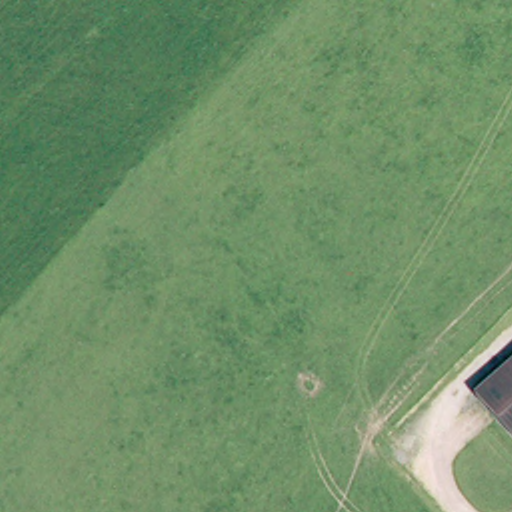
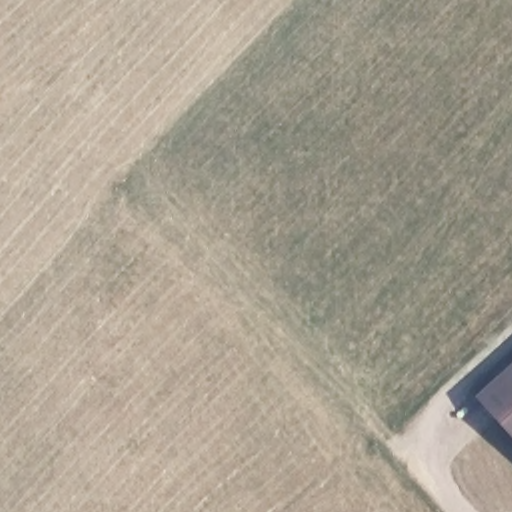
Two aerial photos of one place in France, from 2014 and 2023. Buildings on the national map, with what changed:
unchanged [(512,361),(512,436),(475,395),(512,361)]

